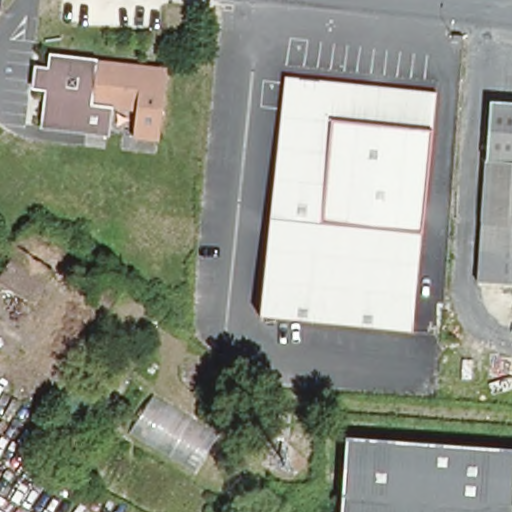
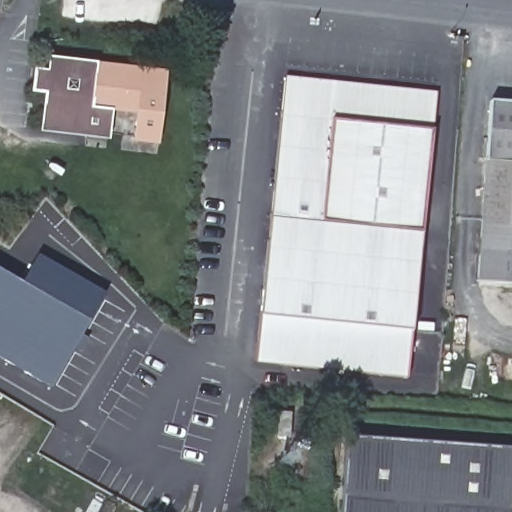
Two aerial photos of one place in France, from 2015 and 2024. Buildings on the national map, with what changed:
unchanged [(140,64),(165,66),(159,135),(91,129),(42,125),(46,85),(34,84),(35,66),(48,67),(49,52),(140,64)]
unchanged [(276,72),(430,86),(411,326),(255,311),(276,72)]
unchanged [(491,99),(512,100),(512,282),(477,278),(491,99)]
demolished [(35,300),(0,280),(0,238),(7,242),(52,270),(35,300)]
new [(0,359),(0,270),(20,282),(37,254),(104,292),(49,387),(0,359)]
new [(261,316),(412,332),(407,379),(256,363),(261,316)]
demolished [(60,401),(75,383),(93,395),(81,416),(60,401)]
unchanged [(276,435),(277,410),(290,410),(288,435),(276,435)]
demolished [(55,450),(37,440),(47,422),(65,432),(55,450)]
unchanged [(351,433),(512,447),(512,512),(345,512),(351,433)]

